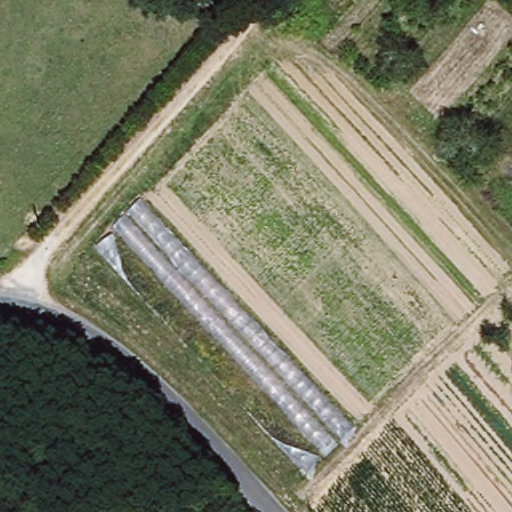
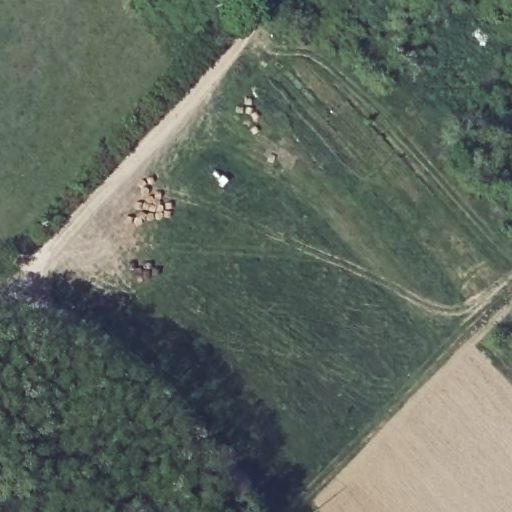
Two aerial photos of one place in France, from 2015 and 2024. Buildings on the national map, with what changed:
demolished [(92,246),(141,195),(355,425),(305,473),(92,246)]

